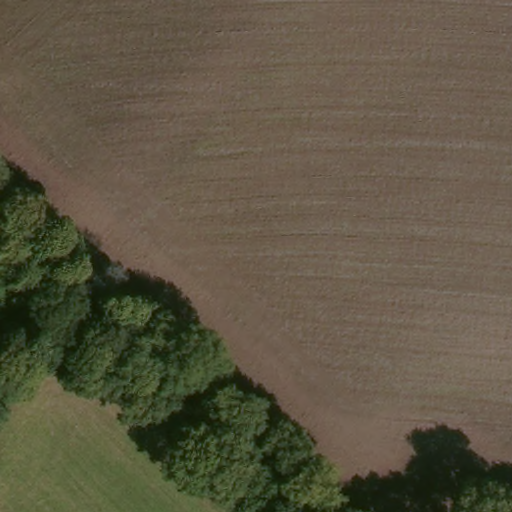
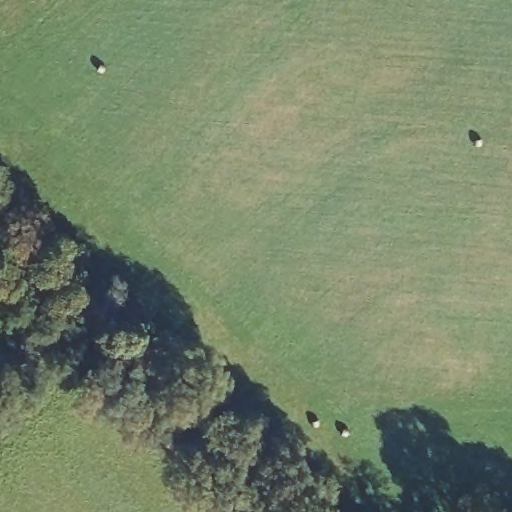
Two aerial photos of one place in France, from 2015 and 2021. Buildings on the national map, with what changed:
[]

